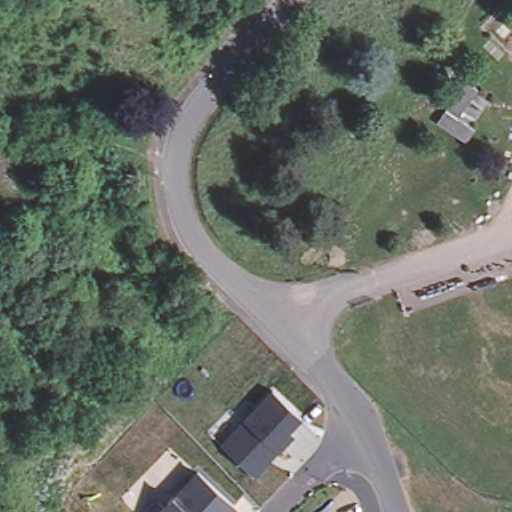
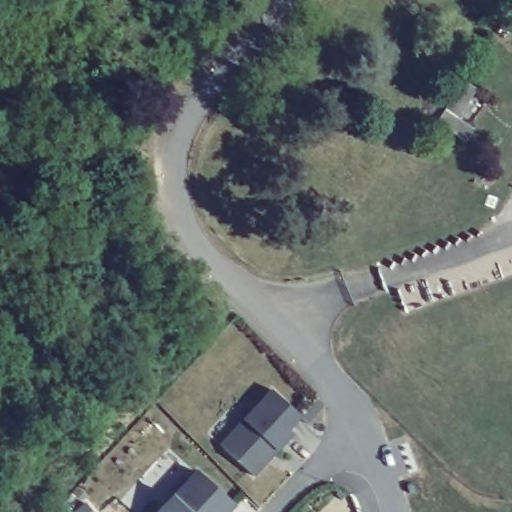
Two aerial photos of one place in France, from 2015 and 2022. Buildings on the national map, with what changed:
unchanged [(435,121),(464,80),(478,89),(459,118),(475,129),(465,142),(435,121)]
unchanged [(304,421),(255,477),(221,444),(271,390),(304,421)]
unchanged [(235,506),(228,512),(159,512),(195,470),(235,506)]

